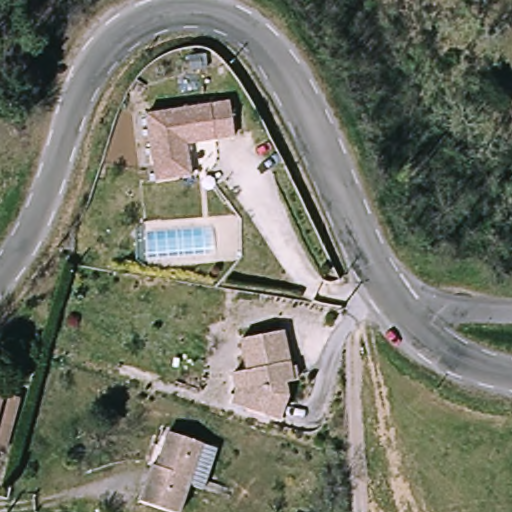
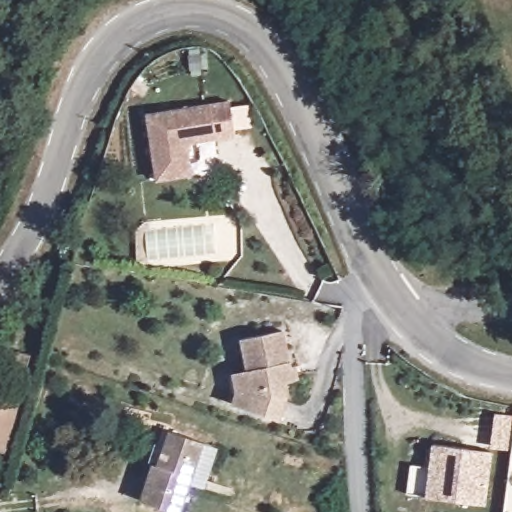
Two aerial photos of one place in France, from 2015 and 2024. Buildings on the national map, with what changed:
unchanged [(235,139),(216,141),(199,142),(190,143),(194,179),(158,182),(151,112),(232,105),(235,139)]
unchanged [(233,392),(232,371),(246,370),(242,336),(286,331),(291,366),(300,365),(302,380),(293,382),(284,383),(287,392),(278,422),(241,410),(228,406),(233,392)]
unchanged [(0,348),(27,356),(20,392),(6,387),(12,366),(0,363),(0,348)]
unchanged [(0,389),(0,385),(1,385),(0,389)]
unchanged [(0,451),(0,399),(15,403),(2,452),(0,451)]
new [(496,417),(512,418),(512,449),(492,447),(496,417)]
unchanged [(140,503),(152,464),(158,466),(170,434),(203,444),(220,449),(208,489),(189,484),(180,512),(170,512),(140,503)]
new [(470,451),(492,454),(489,481),(485,508),(426,501),(433,446),(470,451)]

